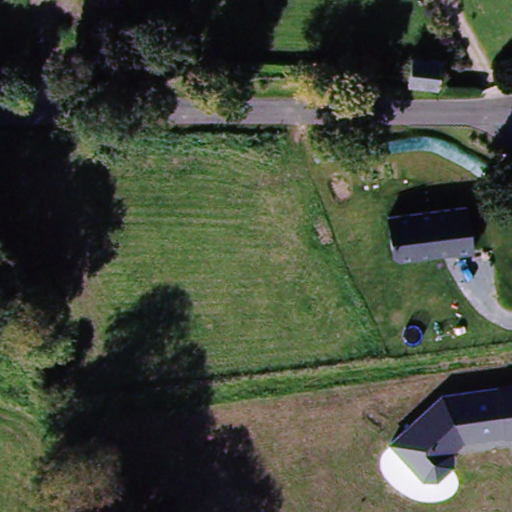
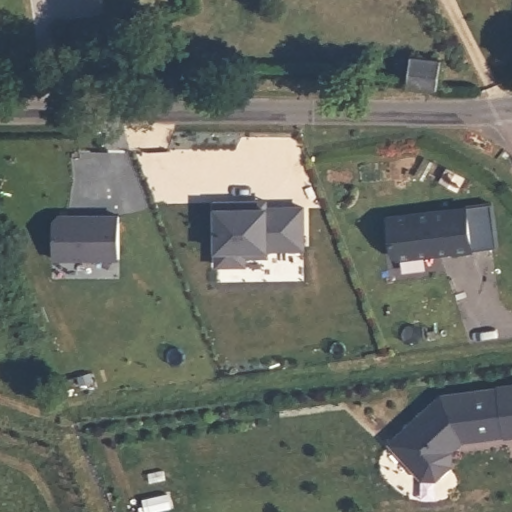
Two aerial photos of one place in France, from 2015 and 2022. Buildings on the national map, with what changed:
unchanged [(452,70),(446,90),(405,77),(410,58),(452,70)]
new [(270,197),(271,207),(307,205),(308,250),(268,252),(270,257),(246,257),(247,266),(215,267),(215,201),(270,197)]
unchanged [(467,206),(472,251),(399,261),(392,255),(389,215),(467,206)]
new [(55,221),(60,216),(122,217),(121,260),(55,258),(55,221)]
unchanged [(441,395),(512,386),(512,435),(465,439),(452,450),(452,465),(437,478),(422,477),(392,442),(441,395)]

